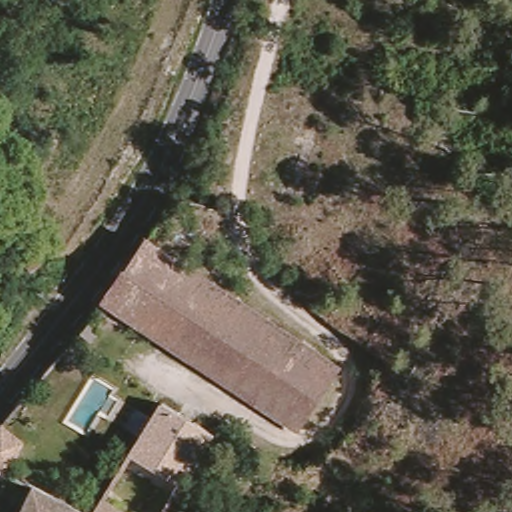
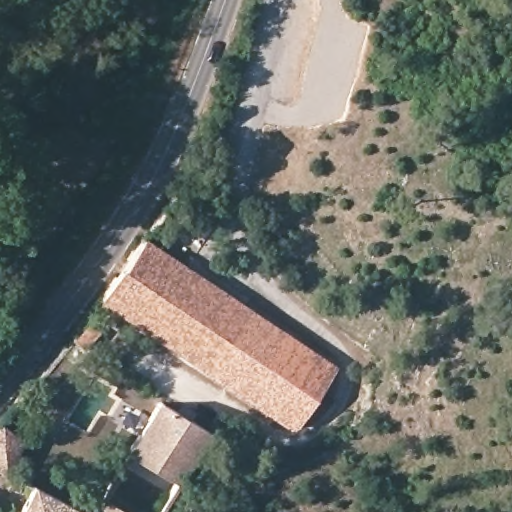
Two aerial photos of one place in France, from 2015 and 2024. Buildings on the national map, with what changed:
unchanged [(341,366),(300,429),(108,299),(149,234),(341,366)]
unchanged [(158,401),(213,434),(167,512),(93,512),(158,401)]
unchanged [(25,444),(10,472),(0,466),(0,425),(1,424),(25,444)]
unchanged [(33,487),(78,512),(21,512),(33,487)]

